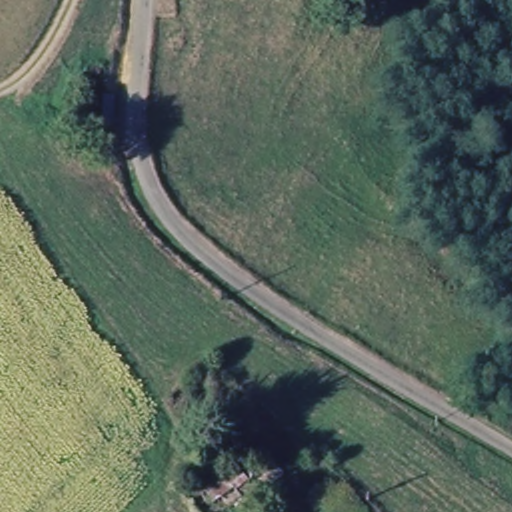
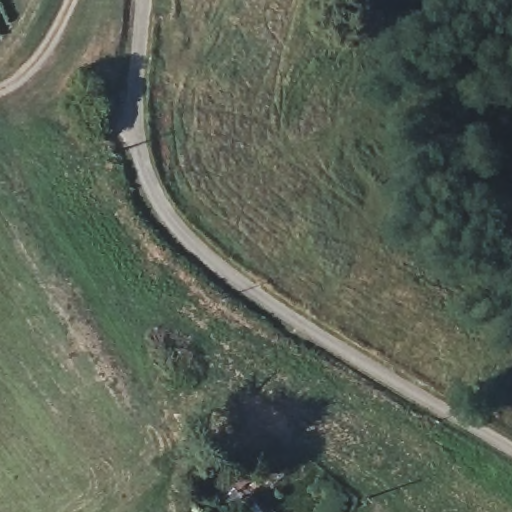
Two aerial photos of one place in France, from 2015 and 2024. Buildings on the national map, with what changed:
unchanged [(90,96),(110,97),(109,124),(88,124),(90,96)]

